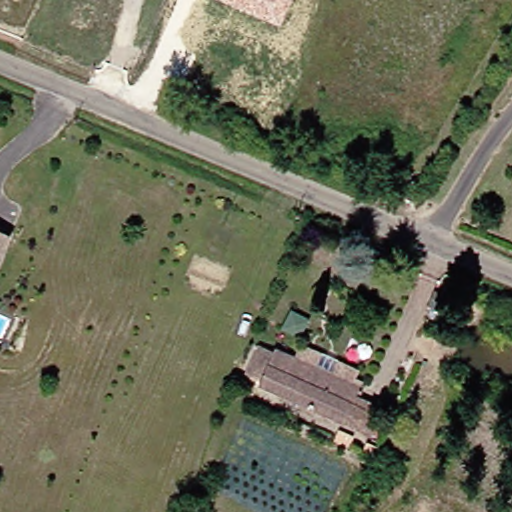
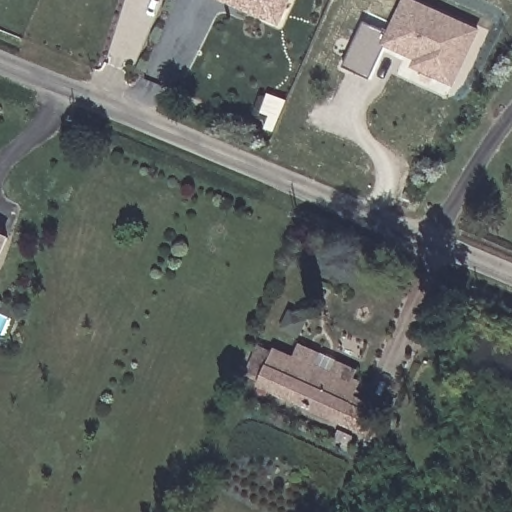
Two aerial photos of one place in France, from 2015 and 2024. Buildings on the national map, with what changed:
unchanged [(220,0),(291,0),(280,27),(220,0)]
new [(385,50),(372,78),(345,66),(365,20),(390,32),(404,0),(406,0),(475,31),(465,52),(452,79),(441,75),(385,50)]
unchanged [(0,252),(0,232),(8,237),(0,252)]
unchanged [(362,437),(337,424),(255,383),(268,355),(351,396),(348,401),(373,413),(362,437)]

